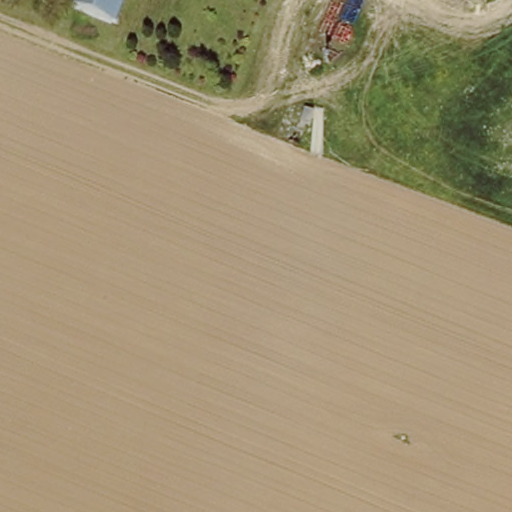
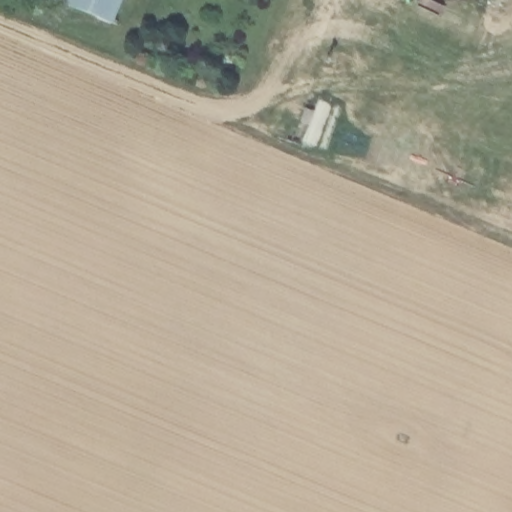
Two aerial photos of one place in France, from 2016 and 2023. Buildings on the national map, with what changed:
unchanged [(60,0),(113,0),(105,18),(60,0)]

